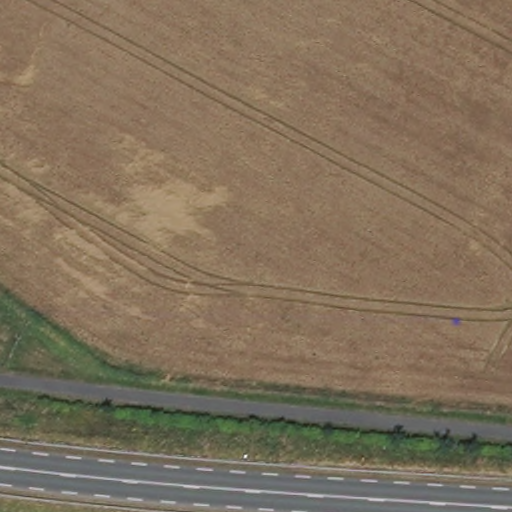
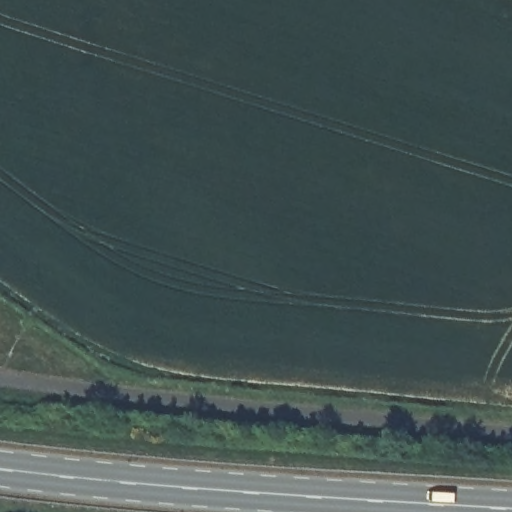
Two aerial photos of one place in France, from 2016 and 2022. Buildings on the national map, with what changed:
[]

